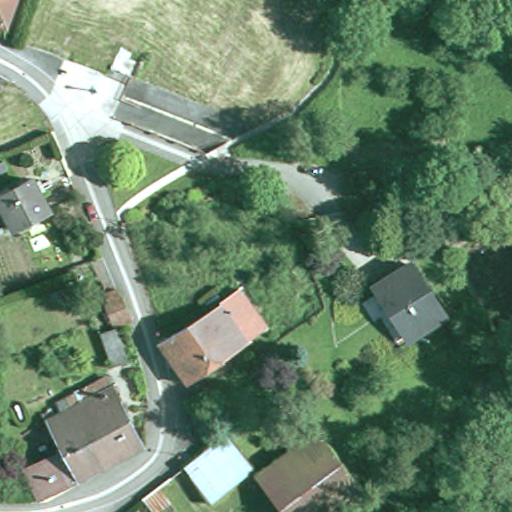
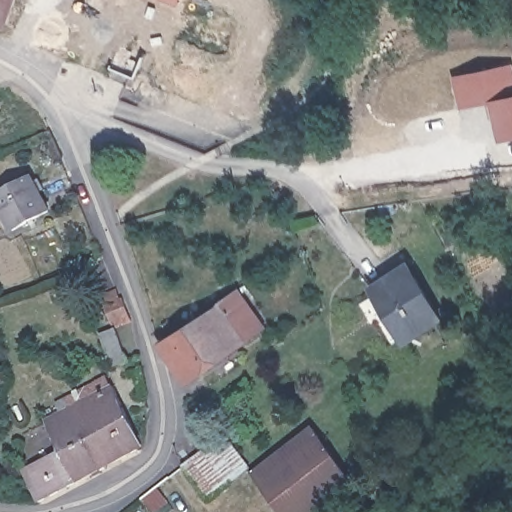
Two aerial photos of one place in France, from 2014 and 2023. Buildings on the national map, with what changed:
unchanged [(0,0),(15,0),(5,26),(0,24),(0,0)]
demolished [(127,8),(109,0),(130,0),(127,8)]
demolished [(135,8),(158,17),(156,22),(134,14),(132,13),(135,8)]
new [(512,64),(512,143),(505,145),(495,104),(463,110),(455,78),(512,64)]
demolished [(8,120),(0,124),(0,97),(0,98),(8,120)]
unchanged [(53,212),(17,231),(1,200),(35,181),(53,212)]
unchanged [(447,317),(414,343),(373,296),(407,267),(447,317)]
unchanged [(112,330),(104,305),(107,304),(104,294),(105,293),(115,289),(119,300),(122,299),(132,321),(115,330),(127,362),(111,367),(99,335),(112,330)]
unchanged [(272,329),(255,339),(255,341),(212,371),(206,375),(194,384),(164,342),(227,301),(229,301),(245,290),(272,329)]
unchanged [(38,502),(22,472),(62,451),(47,421),(114,389),(142,447),(38,502)]
unchanged [(339,512),(286,512),(257,475),(315,430),(365,492),(339,512)]
unchanged [(209,500),(185,467),(206,452),(224,439),(225,435),(230,435),(230,438),(230,441),(252,468),(209,500)]

